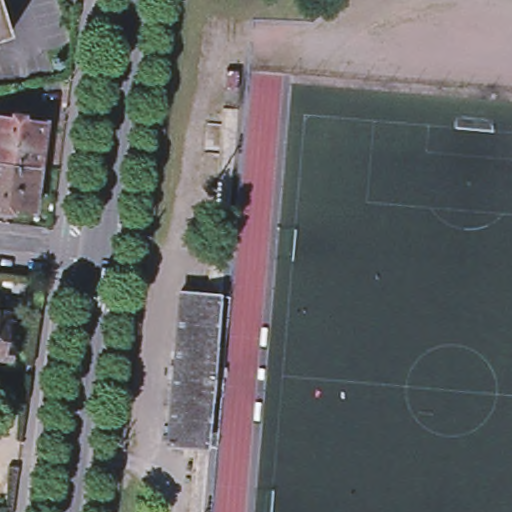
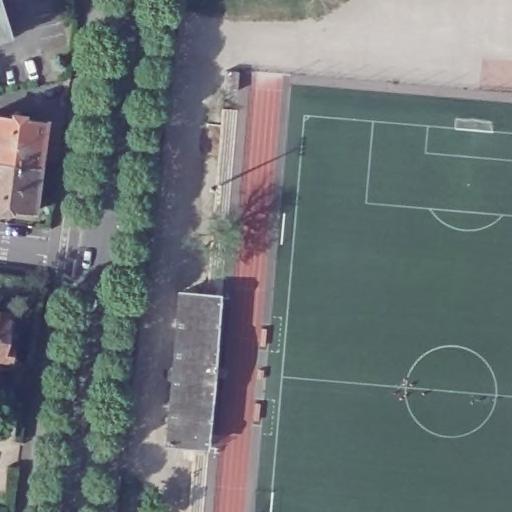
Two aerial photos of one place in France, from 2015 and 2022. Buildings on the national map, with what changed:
unchanged [(0,38),(0,15),(7,35),(0,38)]
unchanged [(13,116),(27,117),(26,121),(49,123),(43,169),(0,164),(0,117),(13,119),(13,116)]
unchanged [(38,214),(15,211),(15,215),(1,213),(2,209),(0,209),(0,164),(43,169),(38,214)]
unchanged [(218,296),(205,447),(166,444),(179,293),(218,296)]
unchanged [(6,360),(0,360),(0,312),(13,314),(6,360)]

